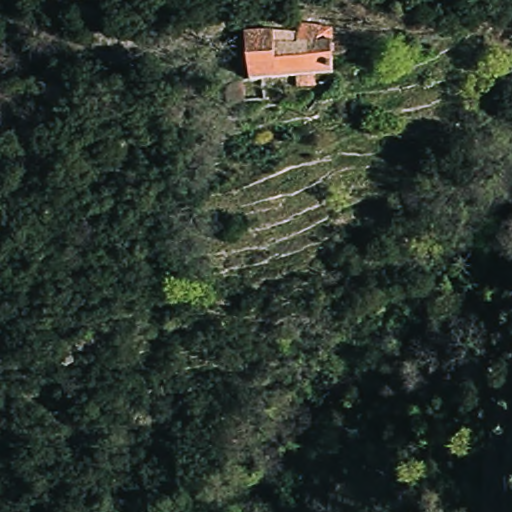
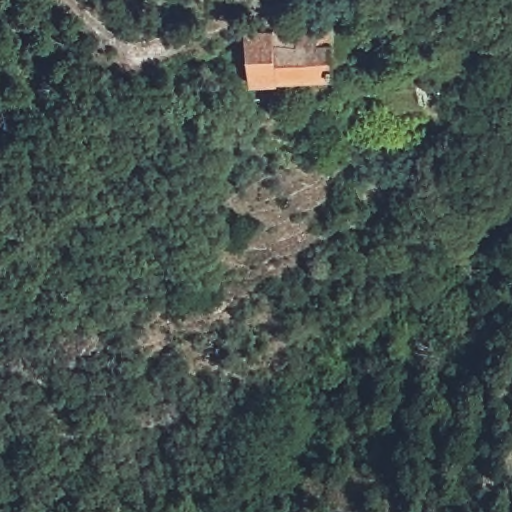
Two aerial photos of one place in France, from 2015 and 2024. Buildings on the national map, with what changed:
unchanged [(244,84),(240,34),(260,31),(298,29),(331,33),(335,33),(336,81),(244,84)]

